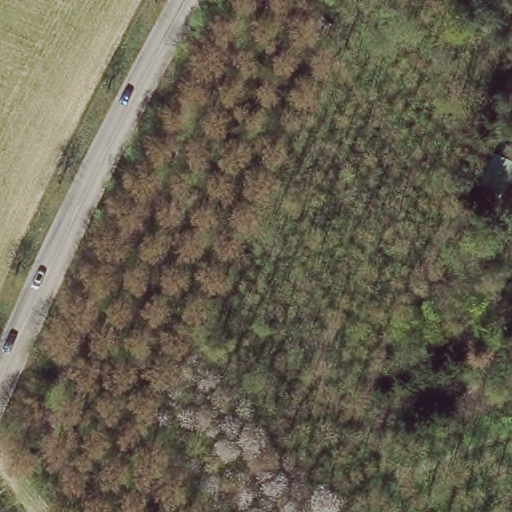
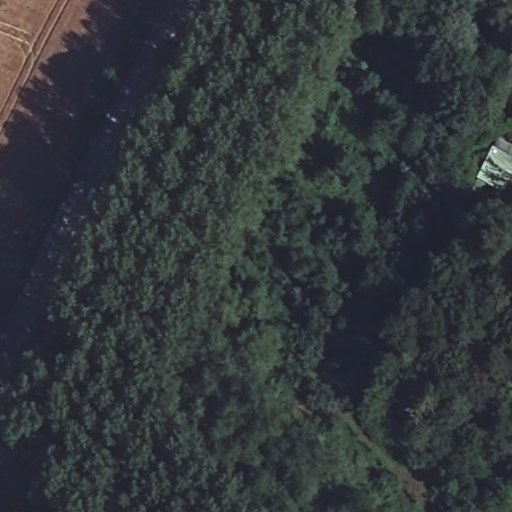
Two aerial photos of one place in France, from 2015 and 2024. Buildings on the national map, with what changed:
unchanged [(512,161),(512,179),(493,192),(478,170),(506,151),(512,161)]

